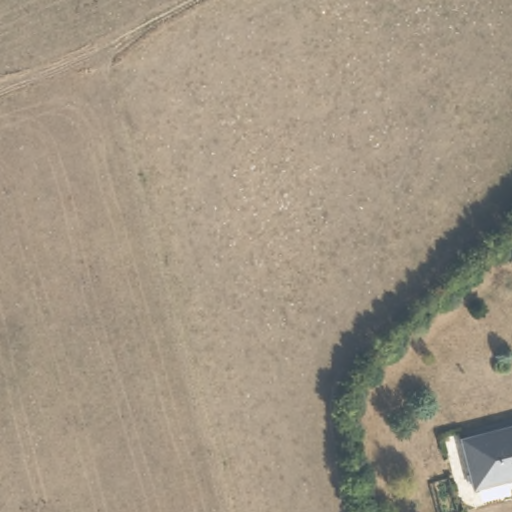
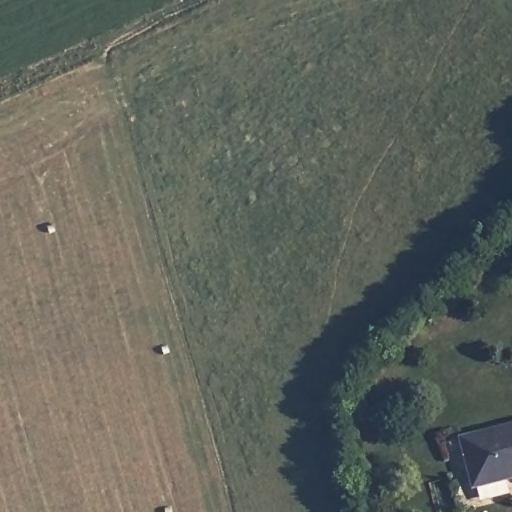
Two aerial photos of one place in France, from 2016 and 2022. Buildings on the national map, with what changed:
unchanged [(465,490),(452,442),(512,426),(512,478),(465,490)]

